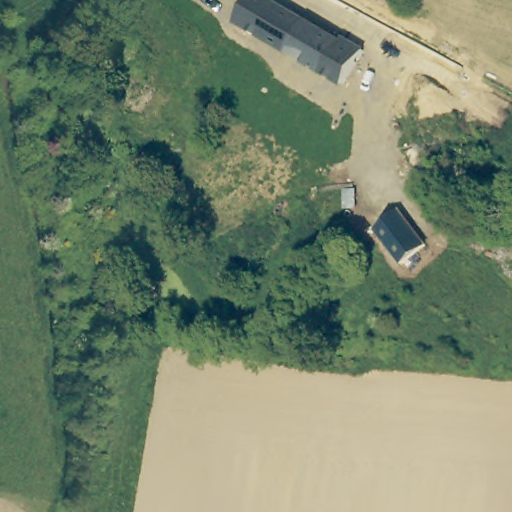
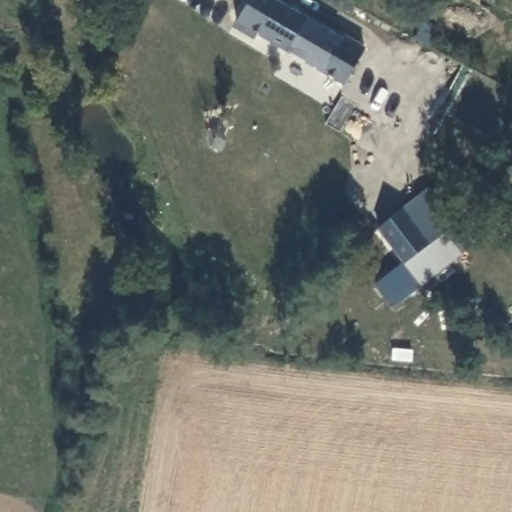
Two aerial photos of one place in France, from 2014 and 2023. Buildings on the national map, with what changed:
unchanged [(223,14),(231,0),(233,0),(252,11),(258,0),(271,0),(316,25),(297,58),(223,14)]
unchanged [(318,21),(371,51),(350,87),(297,58),(316,25),(318,21)]
unchanged [(428,242),(405,259),(381,222),(405,207),(428,242)]
new [(428,242),(444,232),(462,255),(421,287),(392,309),(374,285),(402,264),(405,259),(428,242)]

